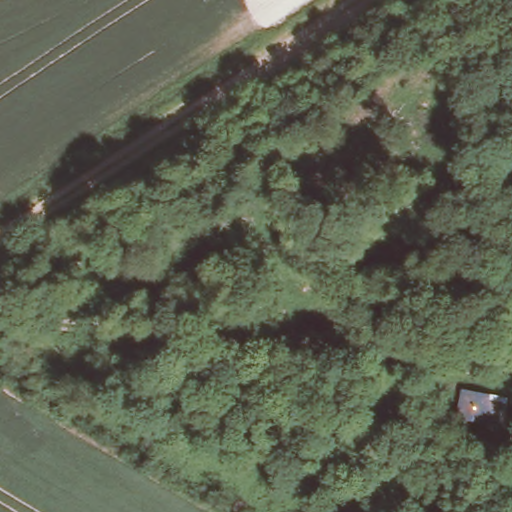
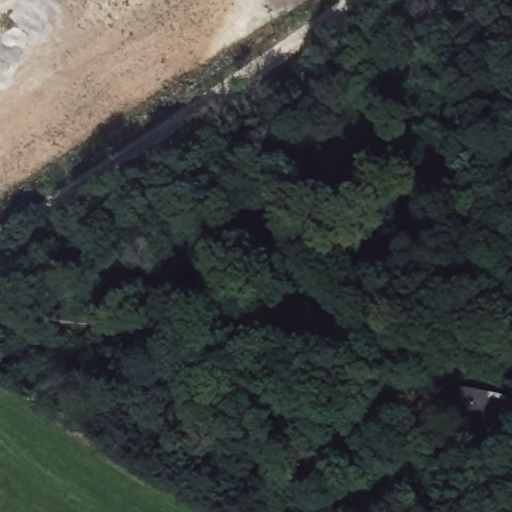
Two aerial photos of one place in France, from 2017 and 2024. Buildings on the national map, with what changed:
unchanged [(460,391),(502,392),(500,421),(485,421),(485,425),(455,424),(460,391)]

